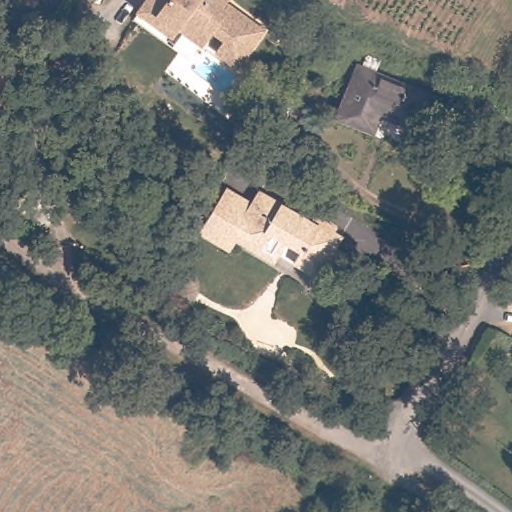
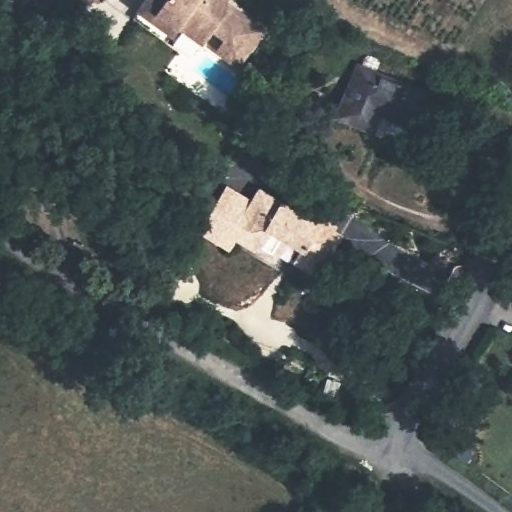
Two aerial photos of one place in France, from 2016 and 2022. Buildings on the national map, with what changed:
unchanged [(232,2),(234,0),(266,24),(243,58),(223,47),(230,35),(216,26),(209,36),(181,17),(170,34),(139,11),(146,0),(229,0),(232,2)]
unchanged [(436,102),(419,132),(385,114),(375,132),(343,115),(368,67),(436,102)]
unchanged [(0,90),(0,70),(15,79),(6,94),(0,90)]
unchanged [(6,94),(0,104),(0,90),(6,94)]
unchanged [(277,128),(295,144),(289,152),(277,168),(258,153),(269,138),(277,128)]
unchanged [(273,263),(259,255),(237,242),(231,252),(201,234),(200,233),(217,205),(226,190),(253,206),(260,194),(298,217),(311,225),(314,219),(336,232),(327,247),(334,251),(317,277),(295,263),(301,252),(286,244),(275,262),(273,263)]

